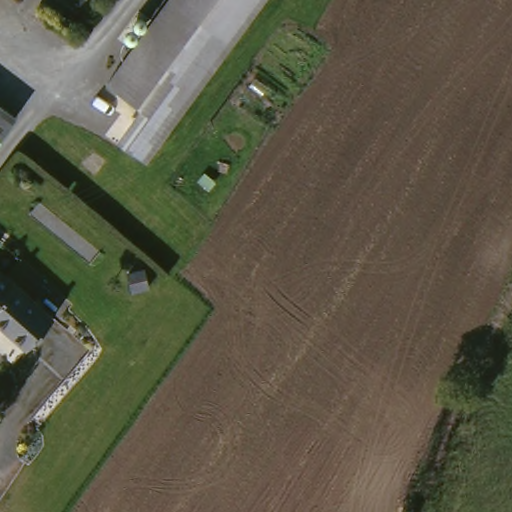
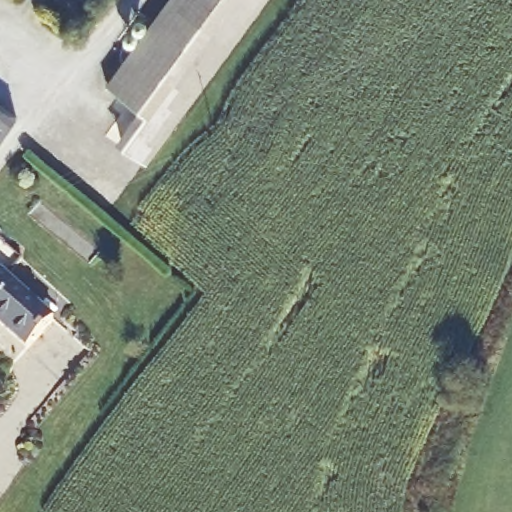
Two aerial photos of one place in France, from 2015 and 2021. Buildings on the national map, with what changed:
unchanged [(167,0),(266,0),(146,165),(108,144),(135,106),(105,85),(167,0)]
unchanged [(0,137),(0,106),(16,117),(0,137)]
unchanged [(0,330),(0,272),(13,282),(26,292),(54,317),(26,351),(0,330)]

